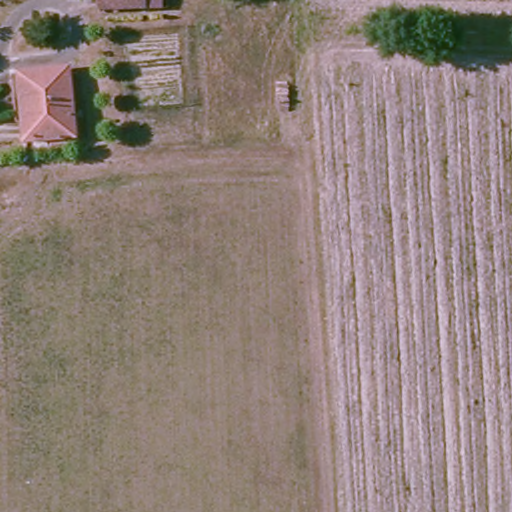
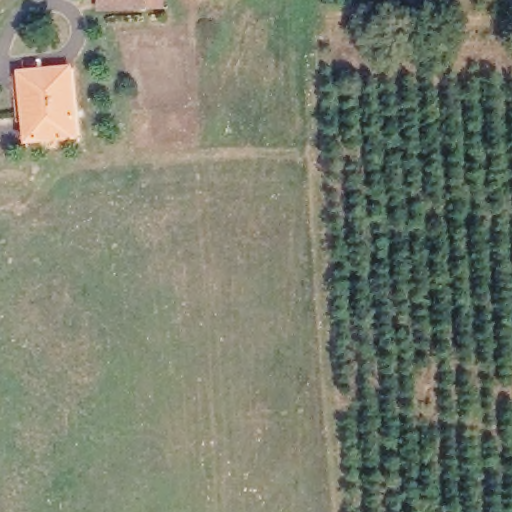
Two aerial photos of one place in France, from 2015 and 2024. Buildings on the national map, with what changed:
unchanged [(95,10),(95,0),(157,0),(157,9),(95,10)]
unchanged [(74,66),(79,135),(31,138),(27,89),(22,89),(22,68),(74,66)]

